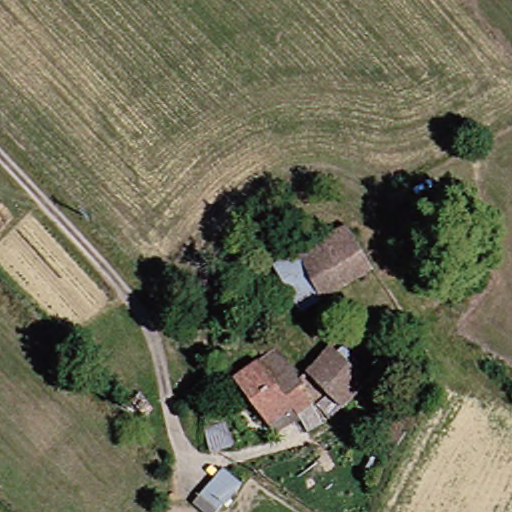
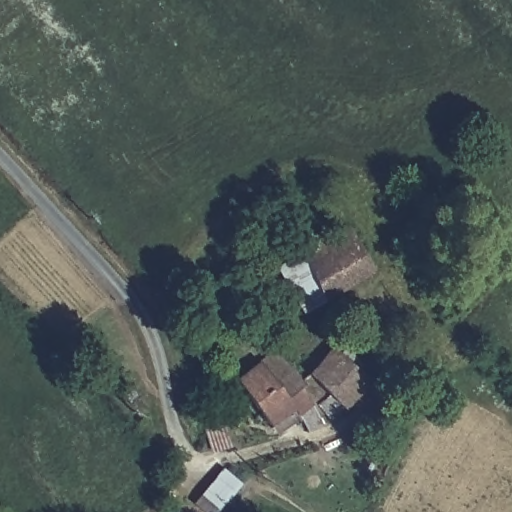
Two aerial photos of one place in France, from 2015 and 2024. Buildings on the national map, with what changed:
unchanged [(387,267),(317,315),(290,271),(360,225),(387,267)]
unchanged [(382,378),(363,403),(351,395),(337,407),(324,395),(289,423),(250,388),(284,355),(305,375),(317,364),(323,368),(347,347),(382,378)]
unchanged [(237,419),(243,447),(217,451),(212,424),(237,419)]
unchanged [(226,512),(213,512),(200,502),(230,466),(251,482),(226,512)]

